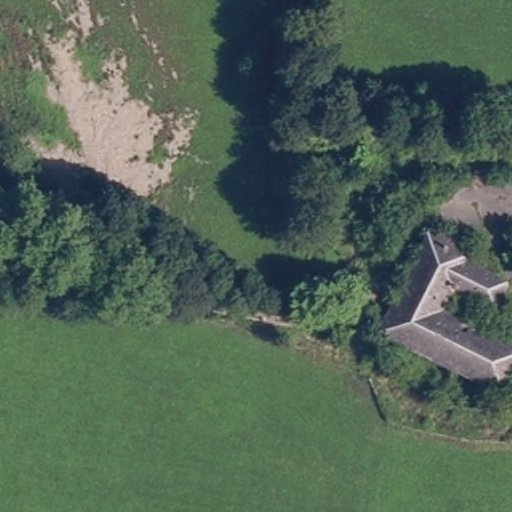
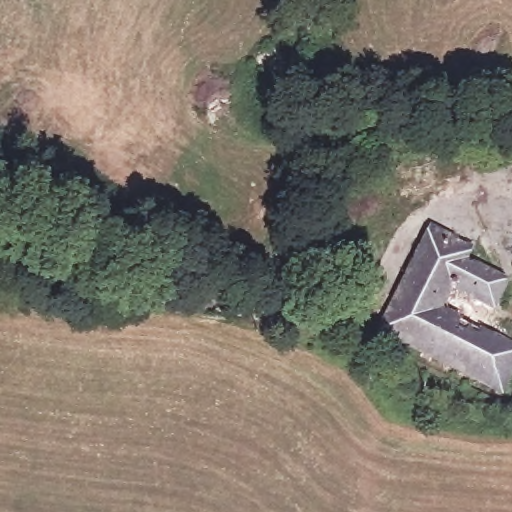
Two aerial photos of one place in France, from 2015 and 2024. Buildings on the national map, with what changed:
unchanged [(512,357),(512,363),(496,396),(376,337),(425,238),(466,258),(458,272),(501,290),(478,339),(512,357)]

